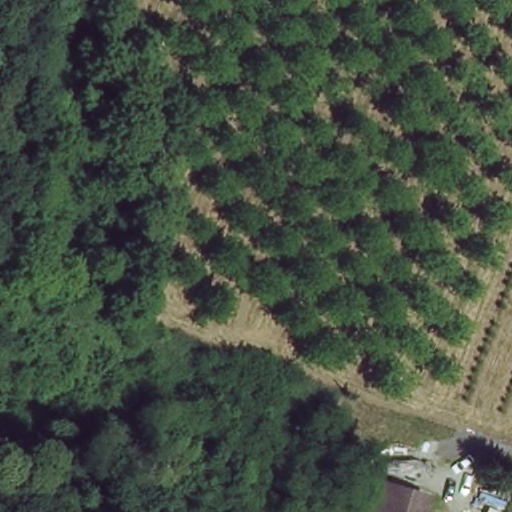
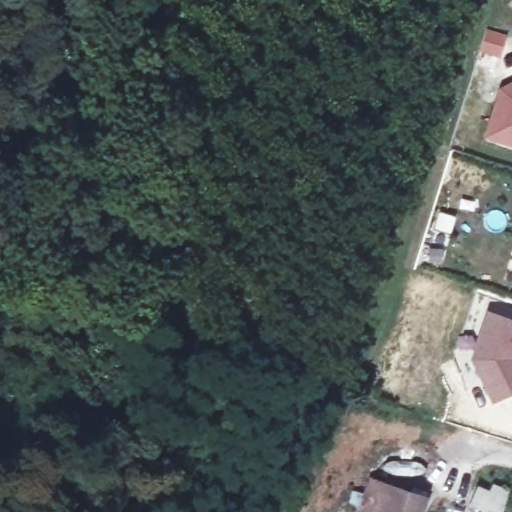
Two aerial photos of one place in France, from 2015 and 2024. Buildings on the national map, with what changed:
new [(512,153),(483,144),(497,93),(512,85),(512,153)]
new [(512,262),(512,265),(511,264),(512,262)]
new [(512,396),(491,403),(476,367),(475,351),(491,313),(512,322),(512,396)]
unchanged [(371,481),(421,496),(415,512),(361,512),(371,481)]
new [(468,507),(479,481),(512,494),(512,497),(506,512),(482,512),(468,507)]

